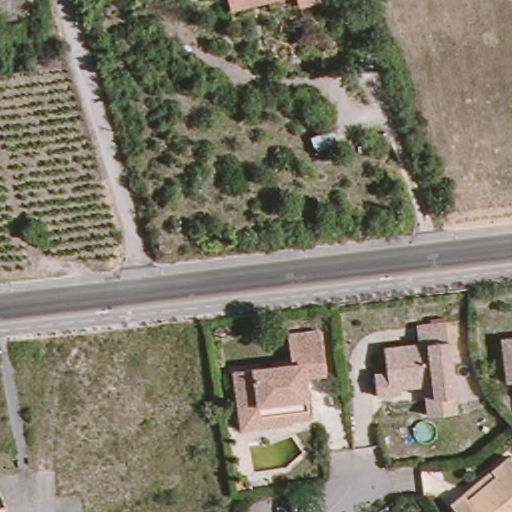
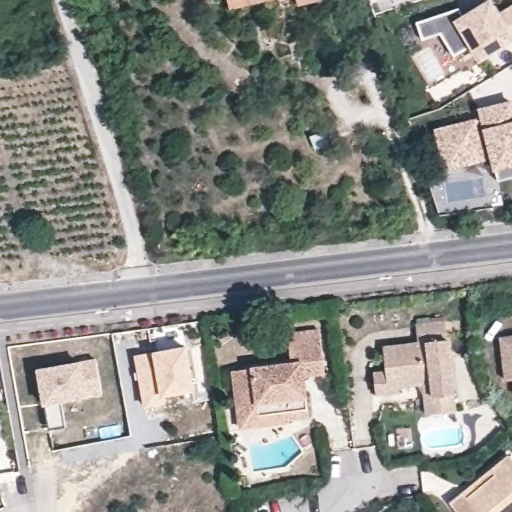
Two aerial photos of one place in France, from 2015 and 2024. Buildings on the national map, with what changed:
unchanged [(229,9),(227,0),(266,0),(229,9)]
unchanged [(296,0),(319,0),(320,0),(298,6),(296,0)]
new [(459,8),(465,18),(490,3),(498,17),(512,8),(512,39),(481,58),(473,45),(454,56),(441,34),(423,40),(417,22),(459,8)]
new [(485,175),(484,167),(443,176),(434,133),(476,125),(473,111),(509,103),(512,117),(512,169),(485,175)]
unchanged [(384,395),(380,373),(392,373),(388,348),(423,342),(420,324),(448,319),(455,365),(456,370),(463,409),(434,413),(429,382),(403,386),(404,392),(384,395)]
unchanged [(245,422),(243,399),(240,364),(258,362),(277,360),(296,357),(294,330),(324,327),(329,366),(310,369),(310,374),(311,383),(314,410),(294,412),(294,416),(245,422)]
unchanged [(502,338),(512,337),(512,379),(507,380),(502,338)]
new [(186,345),(194,391),(164,398),(164,403),(143,407),(133,355),(186,345)]
new [(96,361),(102,395),(61,402),(65,427),(48,430),(38,371),(96,361)]
unchanged [(466,490),(494,467),(512,452),(512,512),(464,512),(454,500),(466,490)]

